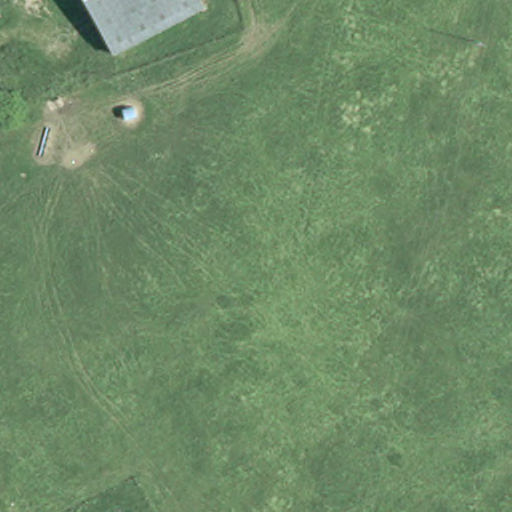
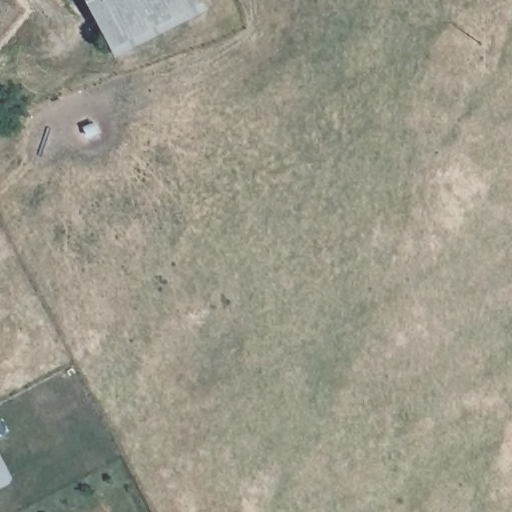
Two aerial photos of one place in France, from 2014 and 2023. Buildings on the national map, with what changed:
unchanged [(198,0),(202,8),(117,56),(86,0),(198,0)]

